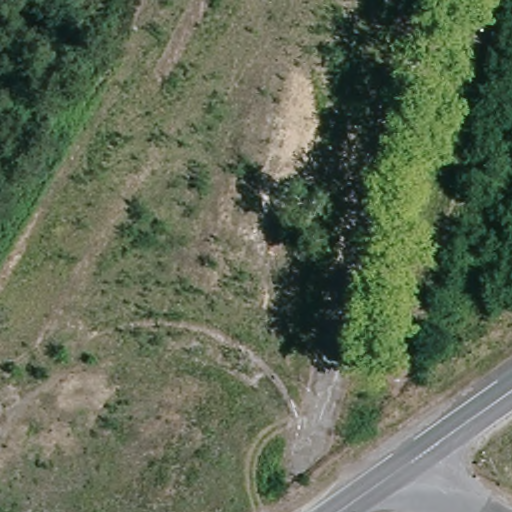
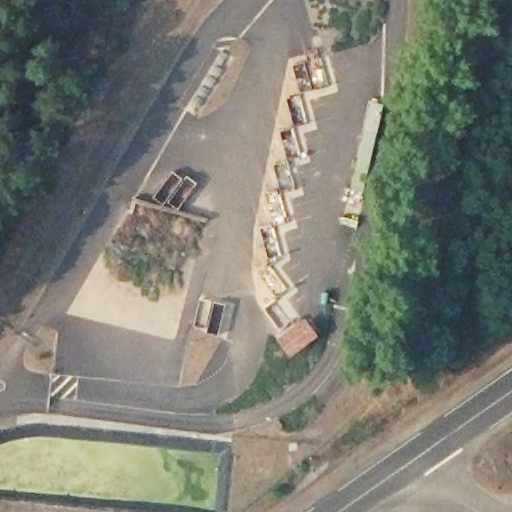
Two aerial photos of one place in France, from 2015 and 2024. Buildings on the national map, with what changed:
new [(276,342),(302,319),(316,337),(289,359),(276,342)]

